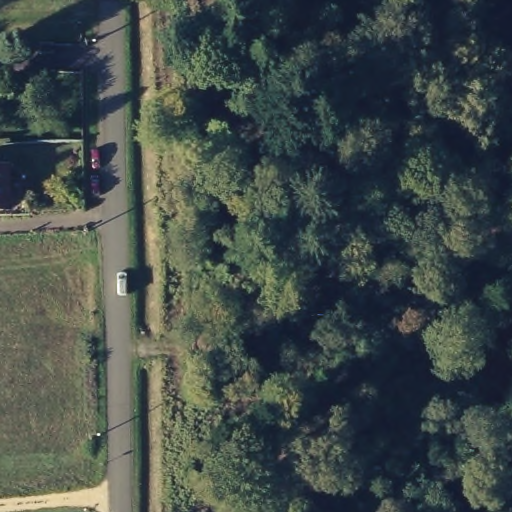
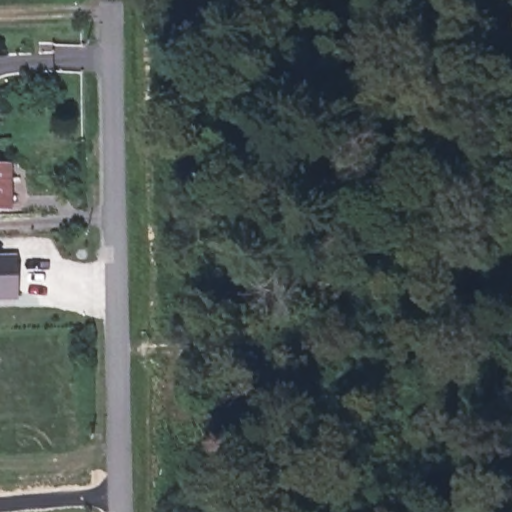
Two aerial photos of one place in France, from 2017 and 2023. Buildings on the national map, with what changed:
unchanged [(0,163),(8,162),(10,204),(0,205),(0,163)]
new [(18,298),(0,299),(0,259),(16,258),(18,298)]

